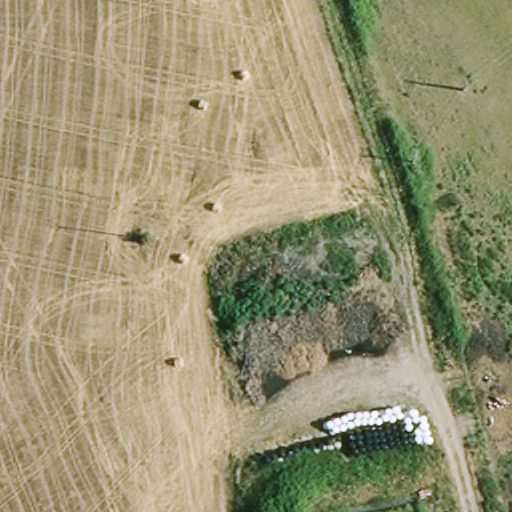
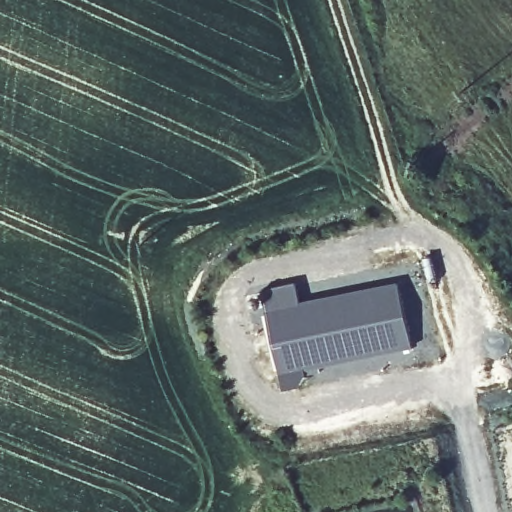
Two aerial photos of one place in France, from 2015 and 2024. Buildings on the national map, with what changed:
new [(282,390),(262,289),(295,281),(300,302),(398,282),(411,346),(303,369),(298,386),(282,390)]

